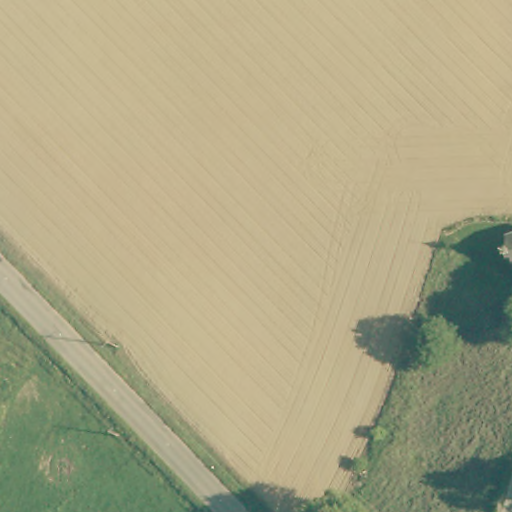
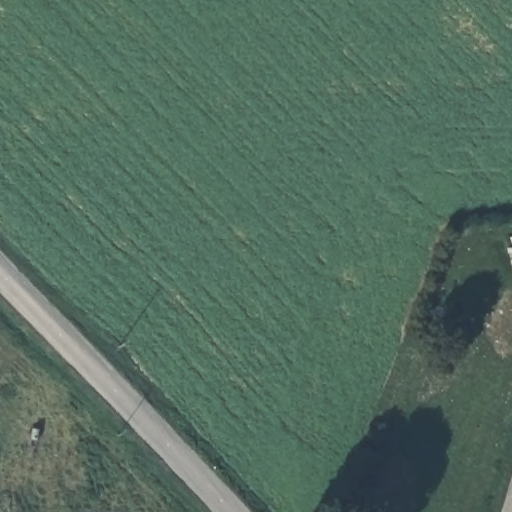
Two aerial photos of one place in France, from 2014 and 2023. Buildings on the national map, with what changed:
unchanged [(512,240),(512,244),(511,240),(512,240)]
unchanged [(512,250),(512,267),(506,252),(512,250)]

